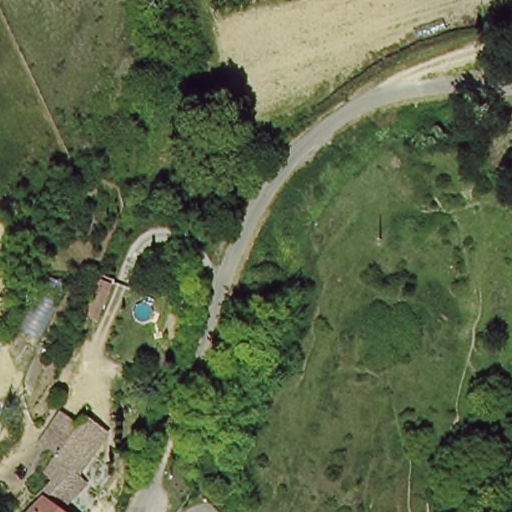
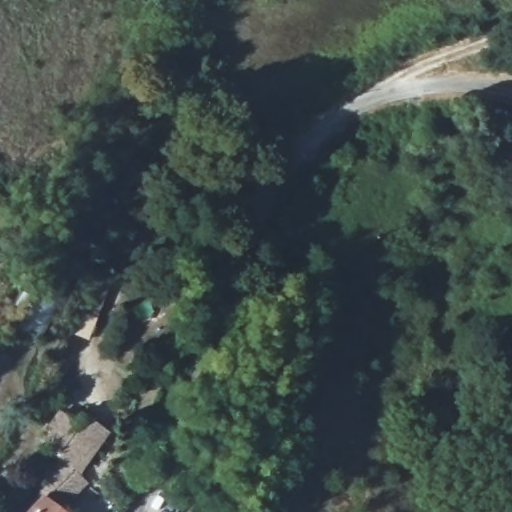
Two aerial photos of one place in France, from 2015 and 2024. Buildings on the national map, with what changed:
unchanged [(89,485),(69,512),(59,512),(37,497),(50,481),(43,473),(56,456),(38,441),(59,411),(76,422),(83,414),(110,434),(80,477),(89,485)]
unchanged [(59,512),(26,512),(37,497),(59,512)]

